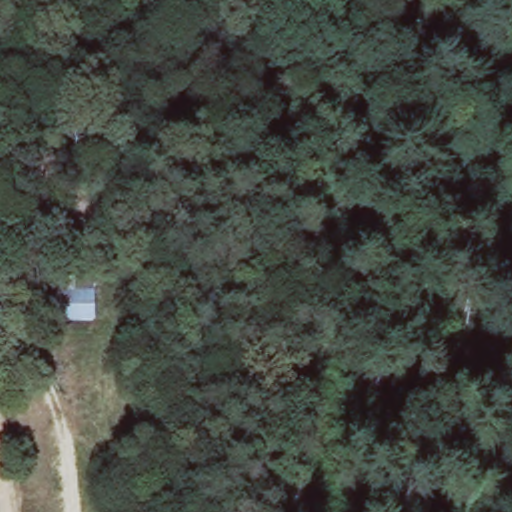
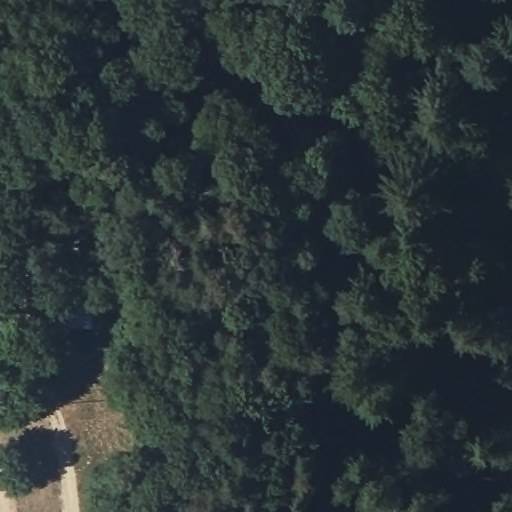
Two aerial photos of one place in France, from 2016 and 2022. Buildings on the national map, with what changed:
unchanged [(57,326),(56,296),(95,295),(95,327),(57,326)]

